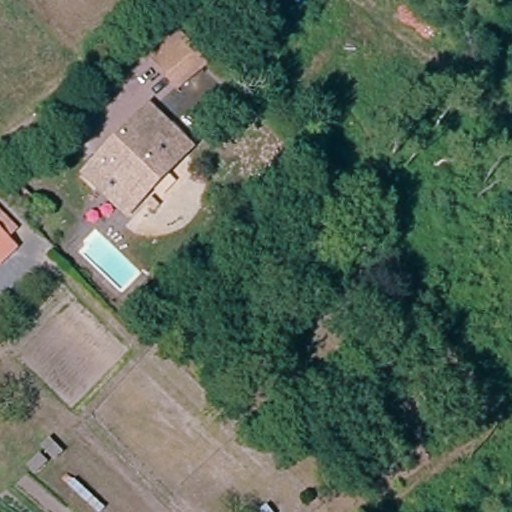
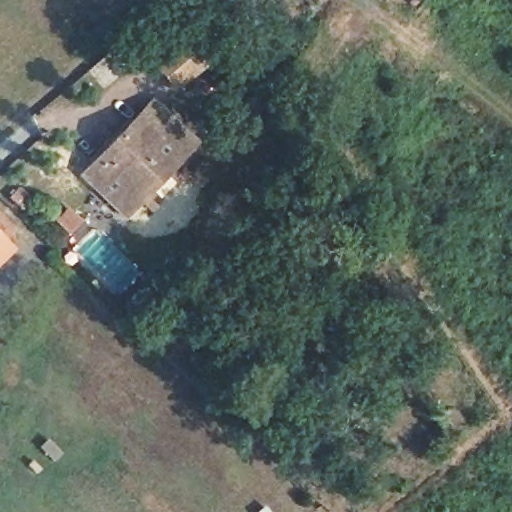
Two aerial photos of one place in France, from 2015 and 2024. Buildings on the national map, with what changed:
unchanged [(174,26),(198,7),(209,20),(186,41),(174,26)]
unchanged [(173,101),(143,69),(177,36),(184,44),(207,69),(173,101)]
unchanged [(191,156),(124,225),(80,181),(148,110),(191,156)]
unchanged [(0,263),(0,249),(7,256),(0,263)]

